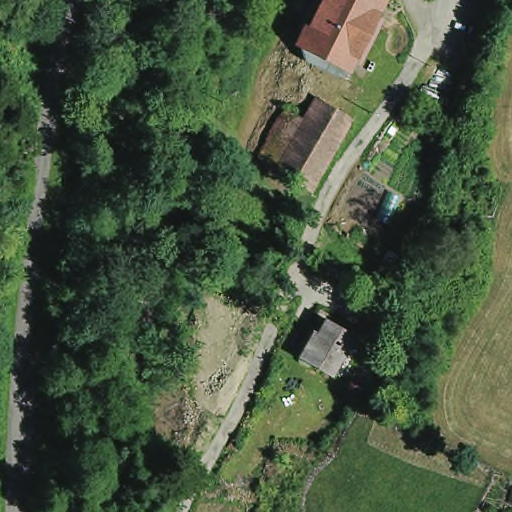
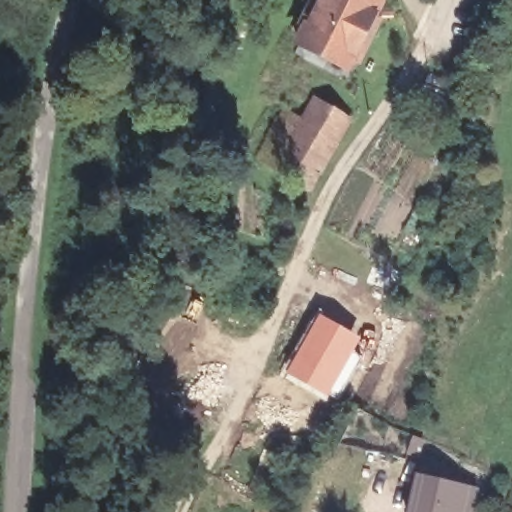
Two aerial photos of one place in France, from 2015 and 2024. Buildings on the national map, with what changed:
unchanged [(347,81),(296,52),(309,27),(302,23),(314,0),(378,0),(381,7),(347,81)]
unchanged [(392,62),(378,90),(364,82),(378,56),(392,62)]
unchanged [(321,91),(356,112),(336,147),(301,127),(308,113),(321,91)]
unchanged [(260,154),(289,102),(308,113),(301,127),(279,165),(260,154)]
unchanged [(279,165),(301,127),(336,147),(314,184),(279,165)]
unchanged [(309,349),(321,328),(318,327),(325,313),(351,327),(333,362),(309,349)]
new [(478,488),(473,512),(400,512),(411,476),(478,488)]

